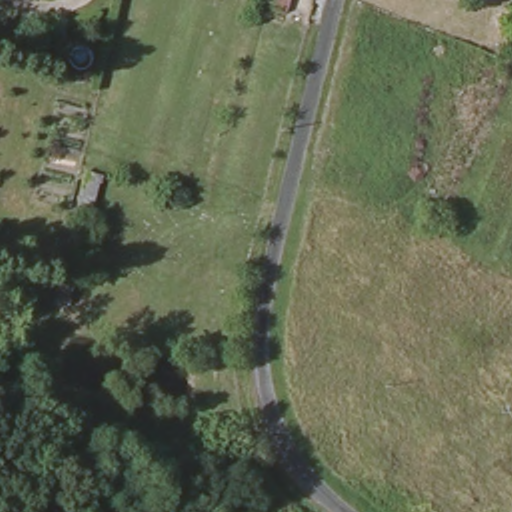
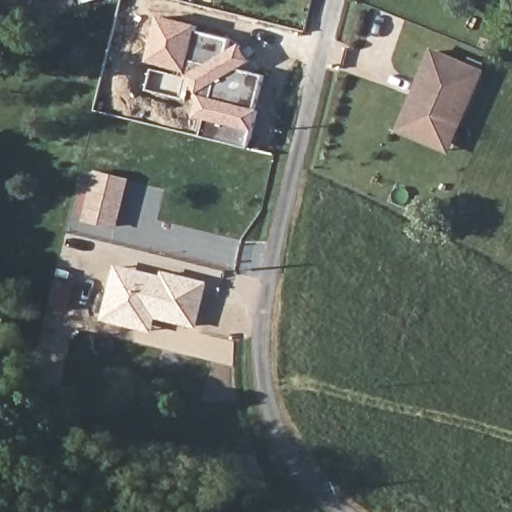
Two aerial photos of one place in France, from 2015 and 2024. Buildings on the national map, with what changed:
demolished [(285,2),(275,0),(286,0),(285,2)]
new [(199,26),(198,31),(231,40),(228,53),(242,44),(253,62),(241,70),(266,76),(257,108),(260,109),(249,148),(202,137),(207,120),(194,117),(200,94),(187,73),(148,63),(159,16),(199,26)]
demolished [(442,47),(444,42),(439,39),(441,34),(443,29),(454,34),(452,39),(447,49),(442,47)]
new [(450,154),(396,132),(432,48),(486,71),(450,154)]
new [(96,170),(131,179),(118,230),(84,221),(96,170)]
new [(197,329),(158,319),(154,334),(103,320),(116,265),(161,276),(163,271),(209,282),(197,329)]
new [(78,285),(71,310),(54,305),(61,280),(78,285)]

